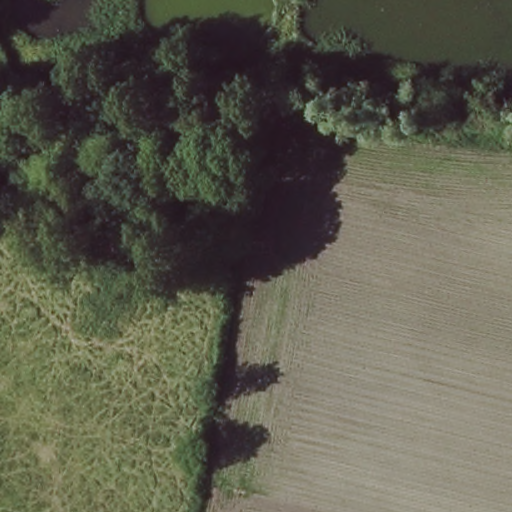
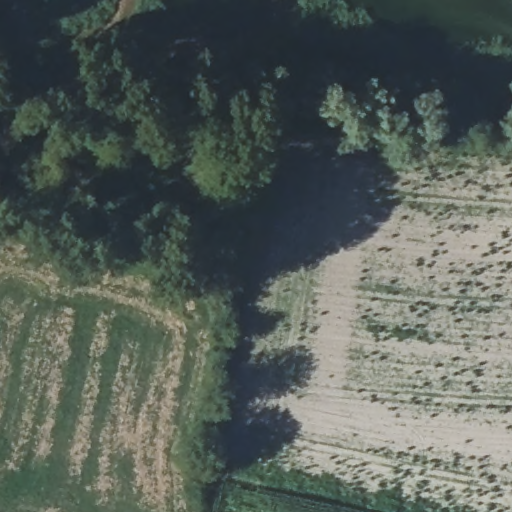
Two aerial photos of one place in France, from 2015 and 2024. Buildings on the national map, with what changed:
[]

